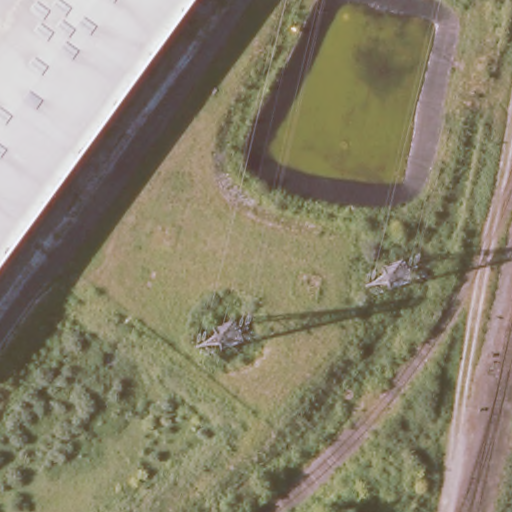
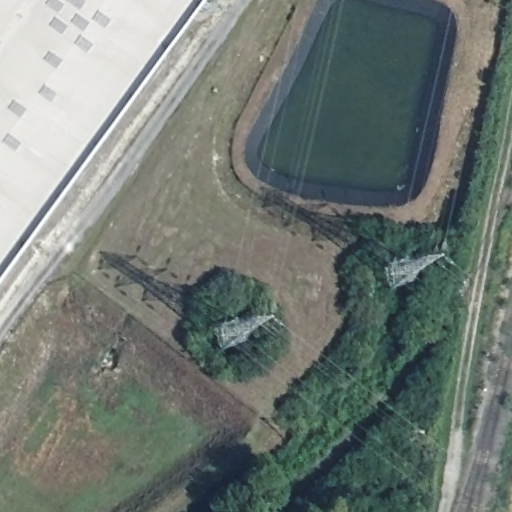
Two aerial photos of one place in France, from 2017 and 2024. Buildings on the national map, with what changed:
unchanged [(0,0),(197,0),(0,269),(0,0)]

